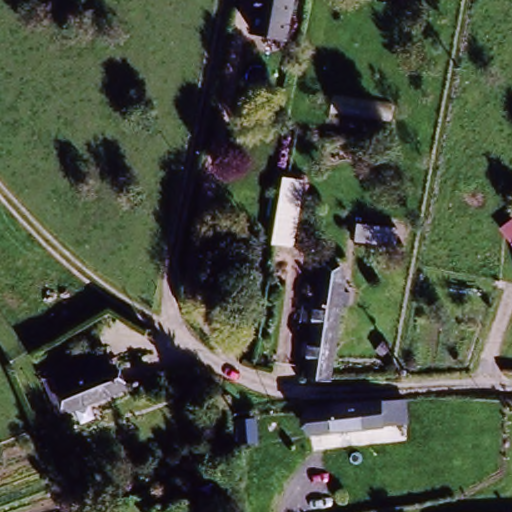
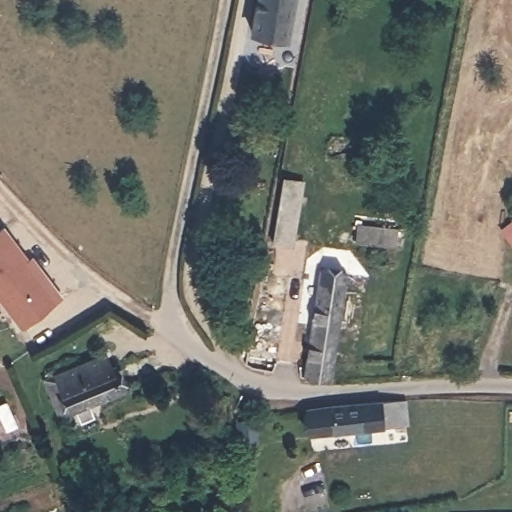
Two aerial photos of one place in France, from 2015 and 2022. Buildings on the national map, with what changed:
unchanged [(259,0),(293,0),(286,38),(253,31),(259,0)]
unchanged [(272,241),(280,202),(281,193),(301,196),(300,206),(293,244),(272,241)]
unchanged [(396,245),(356,241),(358,226),(397,229),(396,245)]
new [(2,227),(46,279),(29,259),(32,255),(50,276),(65,293),(26,325),(0,295),(0,229),(2,227)]
unchanged [(512,228),(512,242),(505,233),(512,228)]
unchanged [(305,300),(315,301),(320,266),(345,270),(331,374),(305,371),(313,318),(303,316),(305,300)]
unchanged [(101,357),(106,355),(112,369),(115,368),(122,385),(123,388),(70,410),(61,415),(46,379),(56,375),(101,357)]
unchanged [(405,396),(407,420),(310,429),(308,403),(405,396)]

